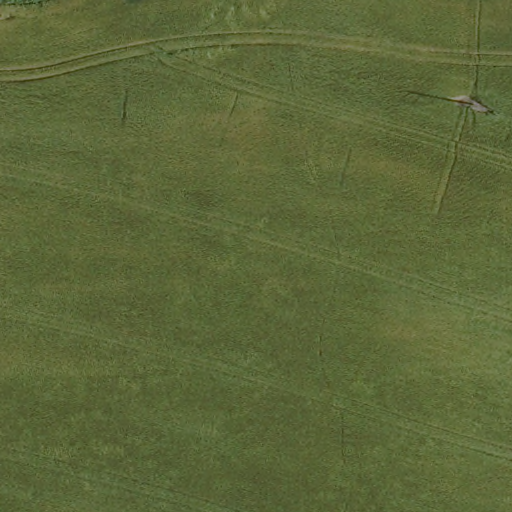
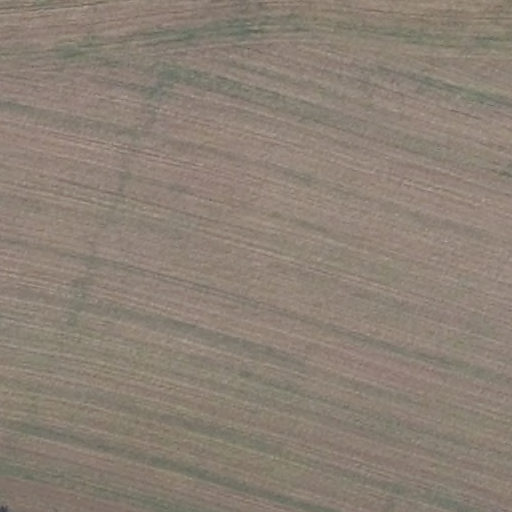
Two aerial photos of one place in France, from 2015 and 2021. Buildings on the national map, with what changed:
[]

